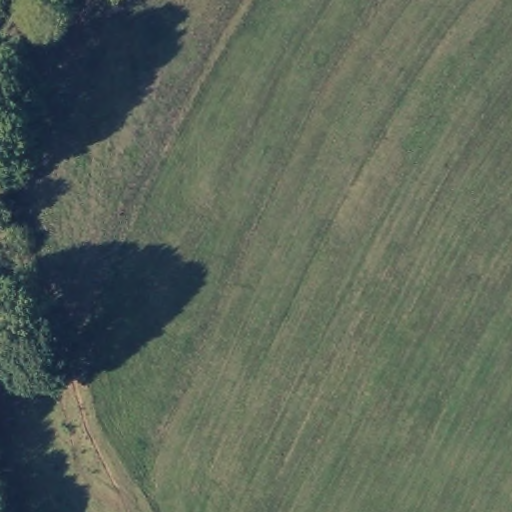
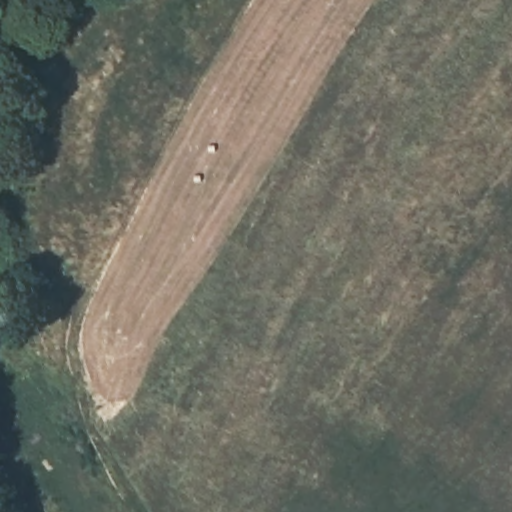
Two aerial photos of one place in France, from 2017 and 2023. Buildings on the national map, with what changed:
[]

